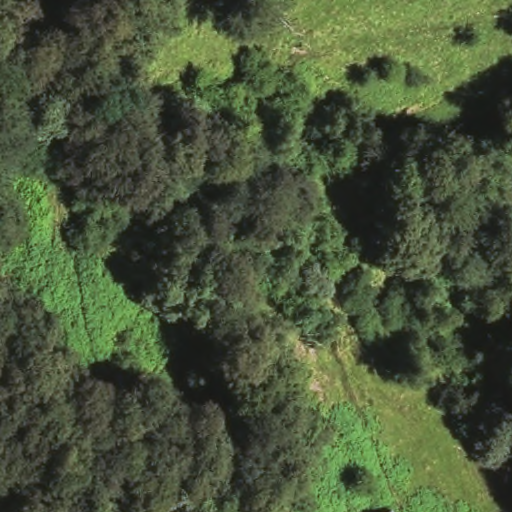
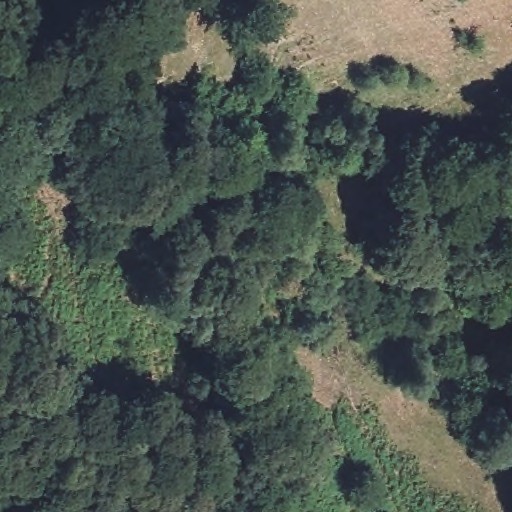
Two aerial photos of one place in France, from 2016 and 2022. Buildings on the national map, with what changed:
unchanged [(389,512),(378,512),(387,507),(389,512)]

